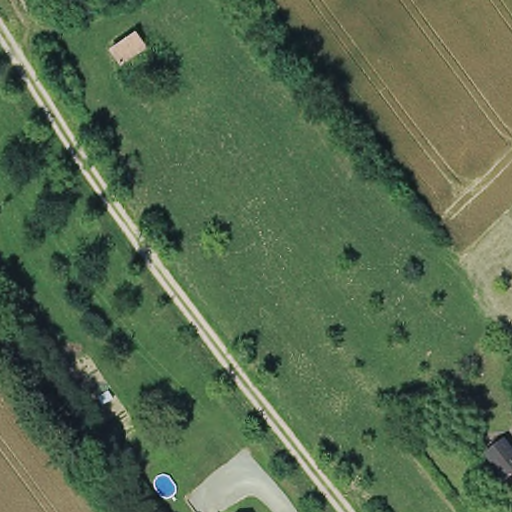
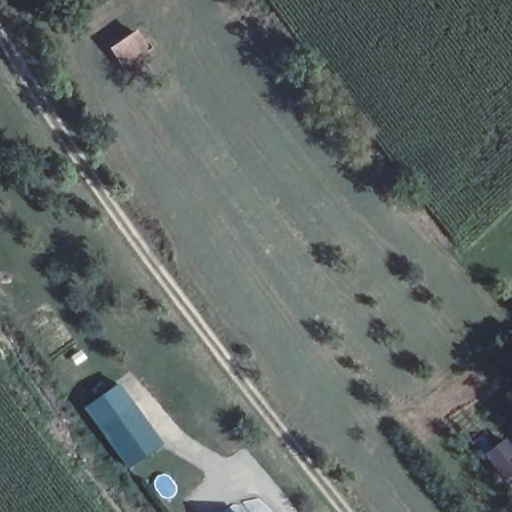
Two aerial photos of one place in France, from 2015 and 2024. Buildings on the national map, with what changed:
unchanged [(128,73),(119,60),(142,43),(152,57),(128,73)]
new [(118,386),(160,444),(129,470),(84,410),(118,386)]
unchanged [(505,480),(486,455),(504,442),(512,453),(512,474),(505,480)]

